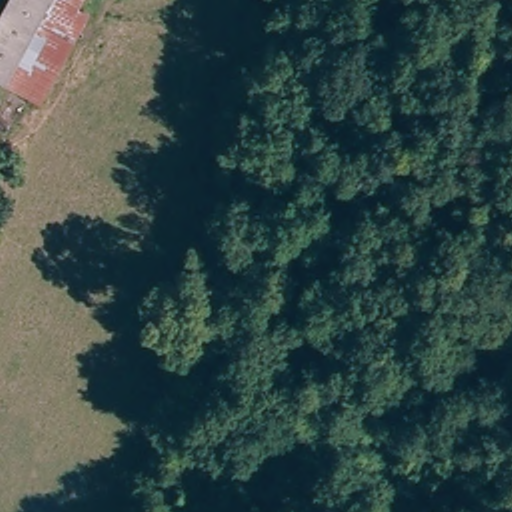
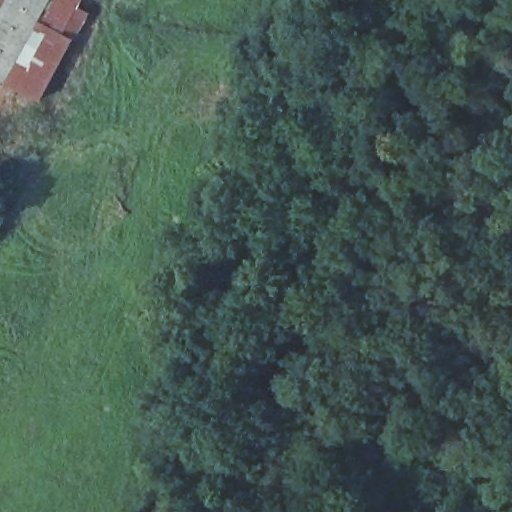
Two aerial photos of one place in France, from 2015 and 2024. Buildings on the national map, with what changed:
unchanged [(0,78),(0,24),(13,0),(85,0),(82,6),(94,12),(77,40),(44,103),(10,83),(0,78)]

